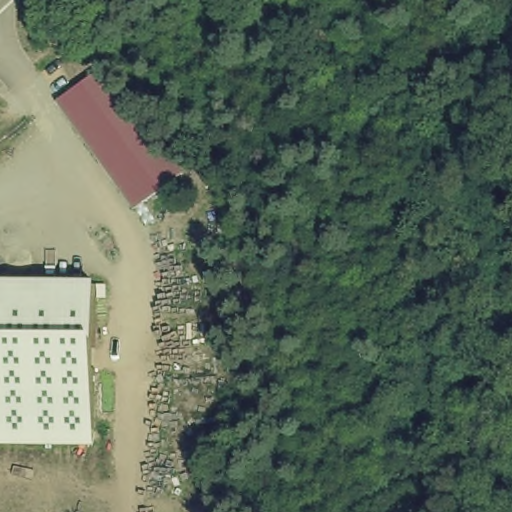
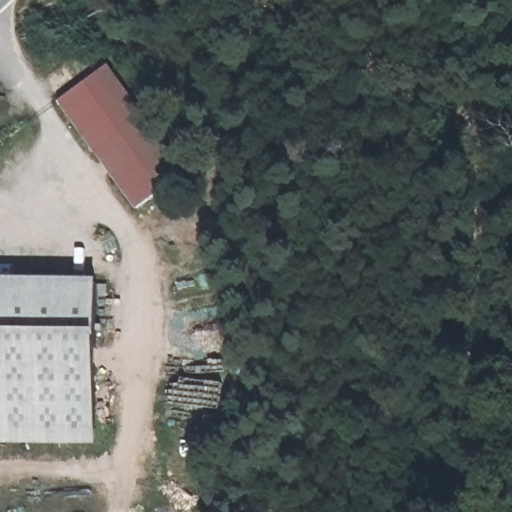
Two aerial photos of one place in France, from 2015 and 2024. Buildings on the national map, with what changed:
unchanged [(137,211),(57,102),(108,66),(188,176),(137,211)]
unchanged [(98,280),(96,333),(95,445),(0,444),(0,279),(98,280)]

